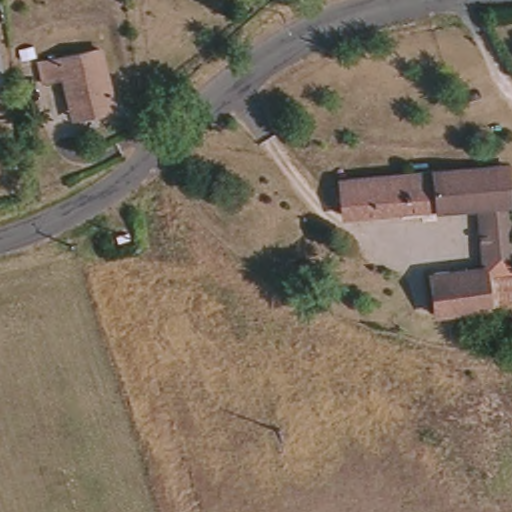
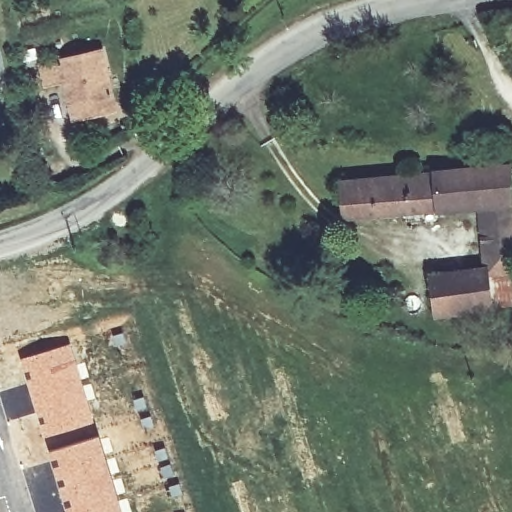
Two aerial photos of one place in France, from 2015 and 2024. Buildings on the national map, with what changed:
unchanged [(74,123),(71,112),(64,83),(45,88),(40,70),(102,56),(113,102),(115,114),(74,123)]
unchanged [(512,191),(512,303),(492,305),(487,268),(485,268),(480,208),(436,212),(435,211),(345,220),(342,181),(367,178),(510,165),(512,191)]
unchanged [(487,268),(492,305),(492,307),(437,315),(432,275),(485,268),(487,268)]
new [(70,343),(76,364),(83,361),(89,378),(81,380),(94,424),(44,440),(18,359),(70,343)]
new [(117,486),(120,500),(127,498),(131,512),(65,512),(47,450),(98,435),(117,486)]

